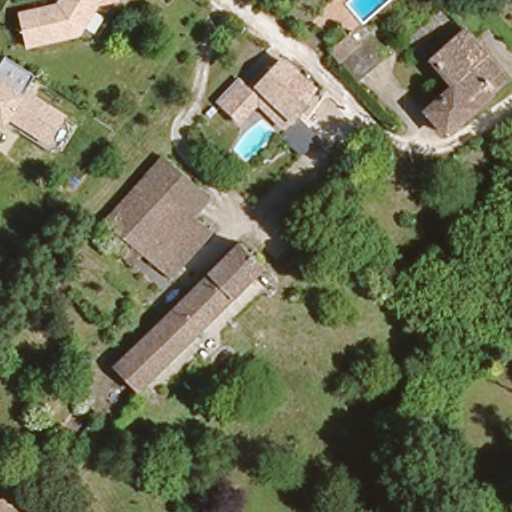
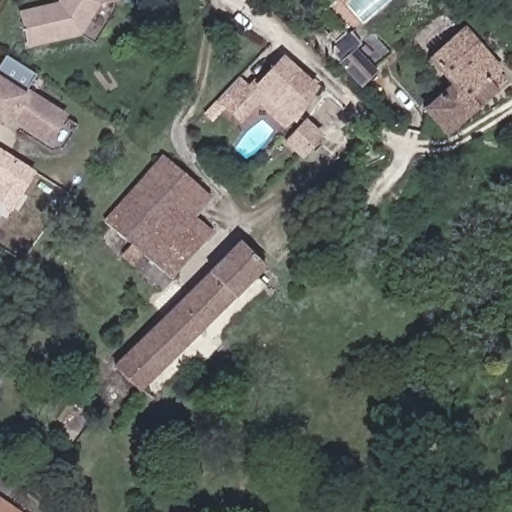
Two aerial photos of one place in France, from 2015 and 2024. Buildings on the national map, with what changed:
unchanged [(55,0),(93,0),(95,10),(75,35),(23,42),(18,10),(52,4),(55,0)]
unchanged [(355,83),(337,64),(324,47),(347,29),(362,45),(376,34),(391,52),(355,83)]
unchanged [(419,110),(450,82),(432,60),(456,39),(467,30),(500,68),(493,74),(500,83),(442,133),(419,110)]
unchanged [(318,88),(295,125),(283,130),(259,107),(242,125),(220,105),(239,79),(247,86),(254,79),(258,82),(285,57),(318,88)]
unchanged [(5,127),(0,124),(0,65),(7,58),(35,75),(29,91),(68,116),(49,145),(10,122),(5,127)]
new [(0,204),(0,150),(36,174),(12,211),(0,204)]
unchanged [(144,175),(159,159),(212,202),(196,219),(144,175)]
unchanged [(266,188),(262,192),(247,179),(265,164),(277,175),(266,188)]
unchanged [(209,230),(168,275),(104,220),(144,175),(196,219),(209,230)]
unchanged [(113,370),(238,245),(239,248),(262,270),(248,283),(138,393),(113,370)]
unchanged [(0,512),(0,507),(8,512),(0,512)]

